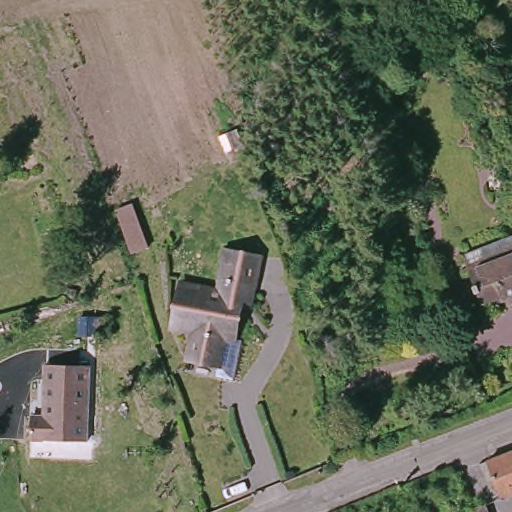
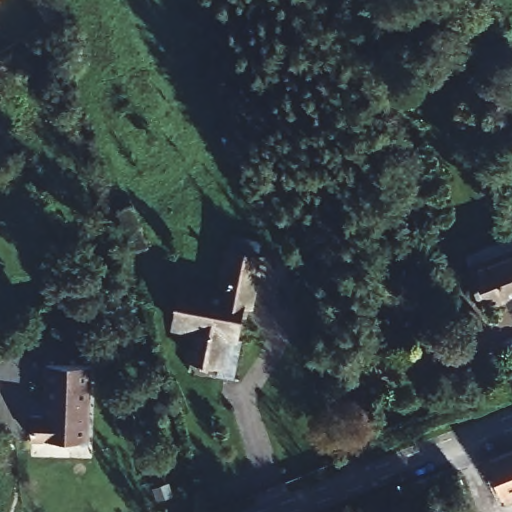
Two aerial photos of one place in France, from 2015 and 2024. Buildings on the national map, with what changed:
unchanged [(258,251),(240,339),(224,335),(216,367),(185,361),(195,325),(161,316),(169,277),(213,286),(221,244),(258,251)]
unchanged [(482,302),(468,264),(512,247),(512,291),(482,302)]
unchanged [(95,436),(43,437),(40,412),(53,411),(49,360),(92,358),(95,436)]
unchanged [(512,446),(512,487),(492,495),(487,478),(478,480),(471,460),(512,446)]

